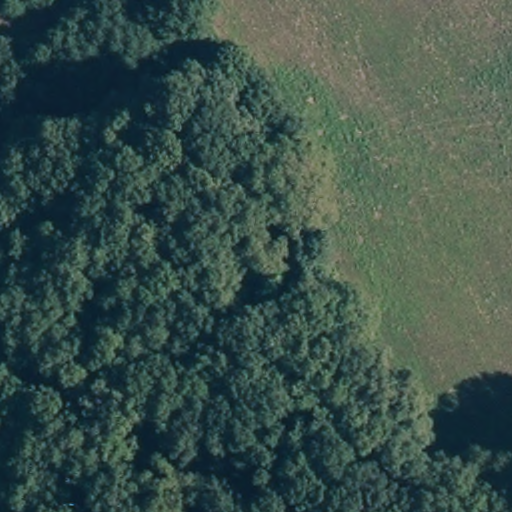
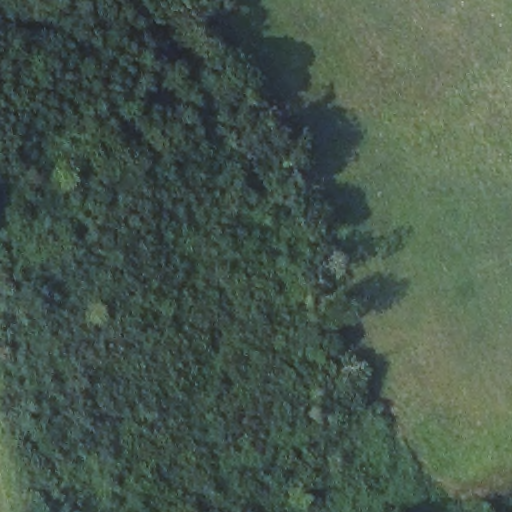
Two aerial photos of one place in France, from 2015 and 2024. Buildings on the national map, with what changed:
[]

